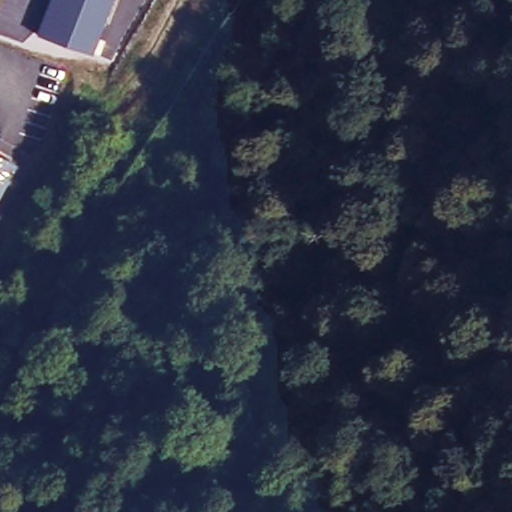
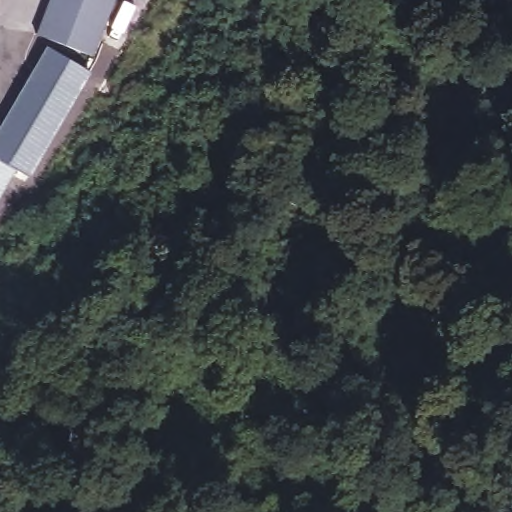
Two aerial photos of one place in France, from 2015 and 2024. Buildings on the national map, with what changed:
new [(90,54),(36,34),(49,0),(110,0),(90,54)]
new [(89,73),(31,178),(16,170),(0,199),(0,128),(47,48),(89,73)]
demolished [(0,199),(0,151),(22,161),(0,199)]

